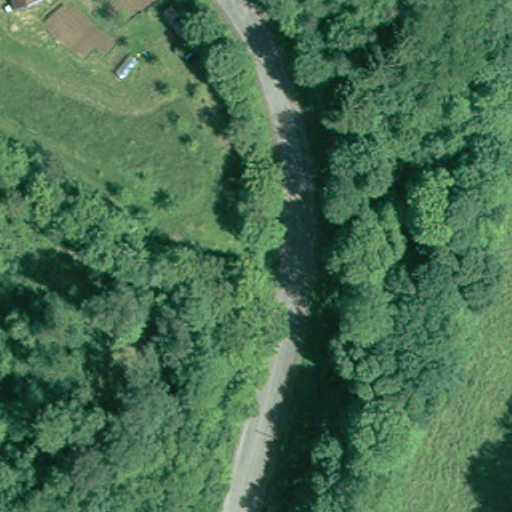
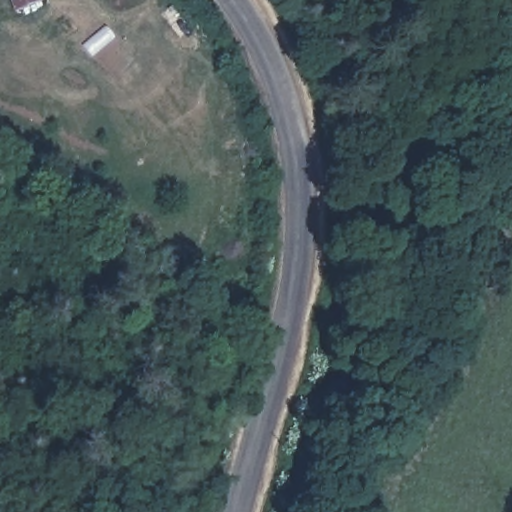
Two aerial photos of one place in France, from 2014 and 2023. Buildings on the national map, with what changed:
unchanged [(22,0),(46,0),(23,6),(22,0)]

